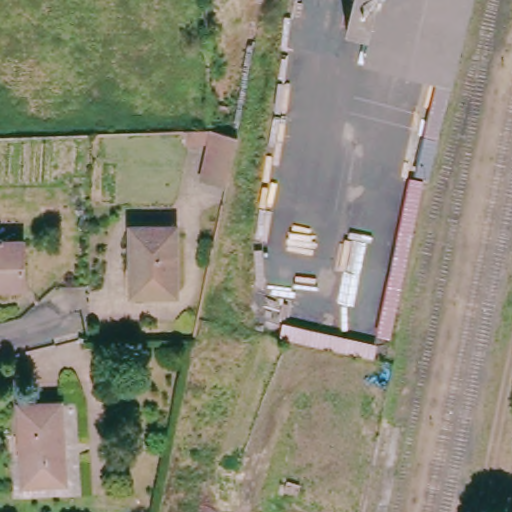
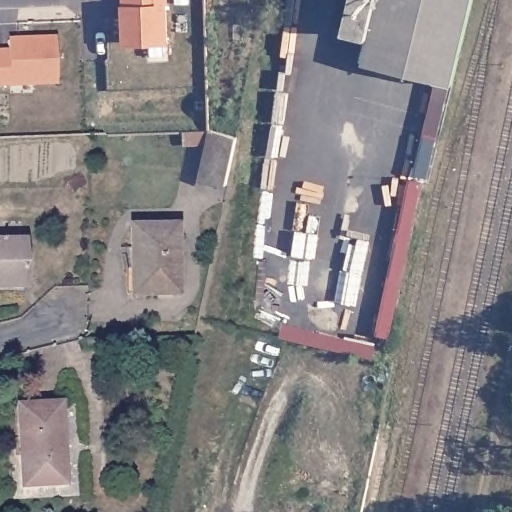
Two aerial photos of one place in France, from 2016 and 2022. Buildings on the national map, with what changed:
new [(128,43),(126,0),(167,0),(169,41),(128,43)]
unchanged [(359,65),(365,39),(339,33),(347,0),(467,0),(446,88),(359,65)]
new [(9,53),(9,41),(56,39),(58,83),(35,84),(35,78),(11,79),(11,85),(0,85),(0,53),(9,53)]
unchanged [(221,182),(195,176),(200,149),(176,151),(176,131),(205,130),(231,133),(221,182)]
unchanged [(170,291),(128,292),(126,226),(169,226),(170,291)]
unchanged [(19,241),(20,287),(0,287),(0,241),(19,241)]
unchanged [(60,486),(19,487),(14,407),(56,405),(60,486)]

